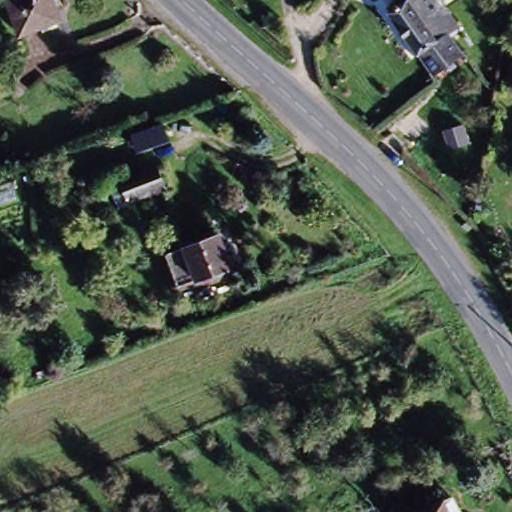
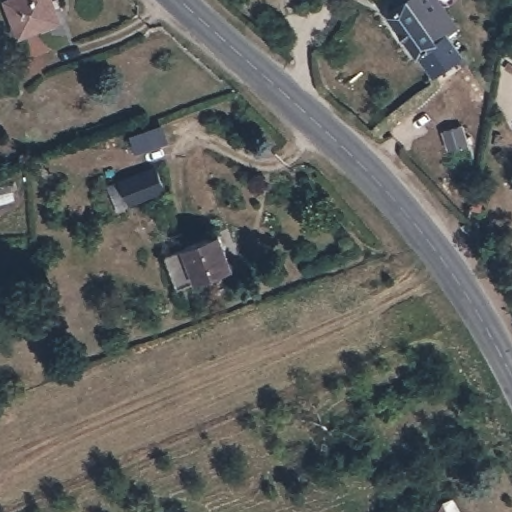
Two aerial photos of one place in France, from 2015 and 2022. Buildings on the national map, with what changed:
unchanged [(18,38),(6,0),(49,0),(57,24),(18,38)]
unchanged [(402,0),(438,0),(455,24),(443,31),(458,53),(428,74),(413,52),(385,11),(402,0)]
unchanged [(461,128),(467,146),(448,153),(442,134),(461,128)]
unchanged [(160,187),(97,213),(90,196),(155,171),(160,187)]
unchanged [(225,237),(238,268),(202,282),(189,249),(225,237)]
unchanged [(202,282),(172,293),(162,259),(189,249),(202,282)]
unchanged [(446,512),(413,512),(441,500),(446,512)]

